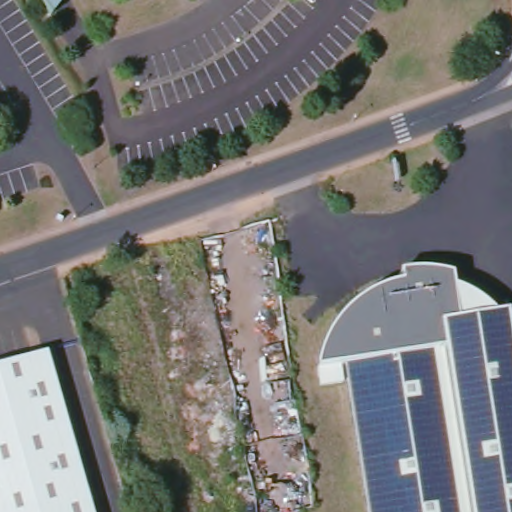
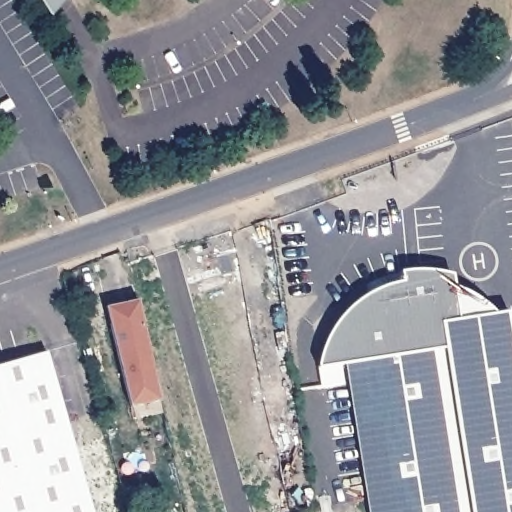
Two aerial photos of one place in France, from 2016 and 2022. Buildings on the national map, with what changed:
unchanged [(41,0),(63,0),(50,15),(41,0)]
unchanged [(512,512),(338,512),(319,366),(323,348),(344,313),(353,305),(363,296),(385,284),(404,279),(403,269),(422,267),(438,268),(454,272),(459,315),(511,308),(512,316),(512,512)]
new [(161,402),(129,408),(104,308),(136,300),(161,402)]
unchanged [(48,352),(93,512),(0,512),(0,365),(48,352)]

